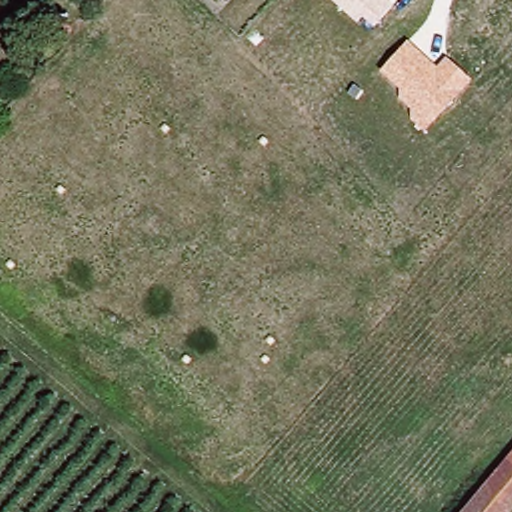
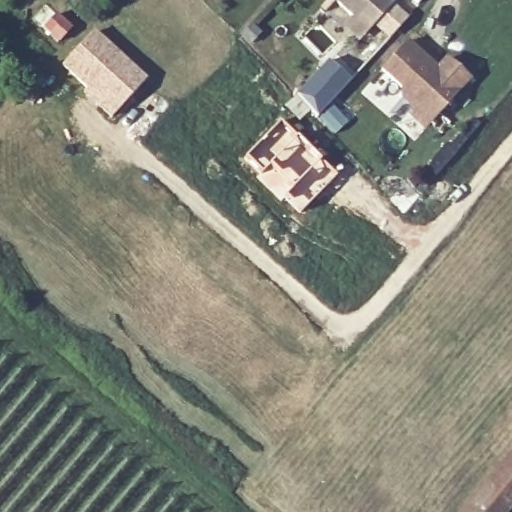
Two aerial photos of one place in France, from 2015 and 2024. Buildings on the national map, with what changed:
unchanged [(372,28),(361,18),(356,23),(331,0),(387,0),(392,6),(372,28)]
new [(47,5),(73,28),(57,44),(36,16),(47,5)]
new [(93,32),(147,80),(110,120),(60,67),(93,32)]
unchanged [(470,81),(423,133),(412,123),(411,111),(400,100),(400,90),(379,71),(407,41),(436,69),(445,59),(470,81)]
new [(341,105),(354,117),(335,136),(317,119),(311,112),(298,123),(283,108),(295,96),(328,61),(342,58),(357,75),(333,102),(338,106),(341,105)]
new [(278,121),(306,145),(336,177),(300,216),(282,200),(281,202),(241,161),(278,121)]
unchanged [(512,450),(512,502),(504,512),(464,512),(512,450)]

